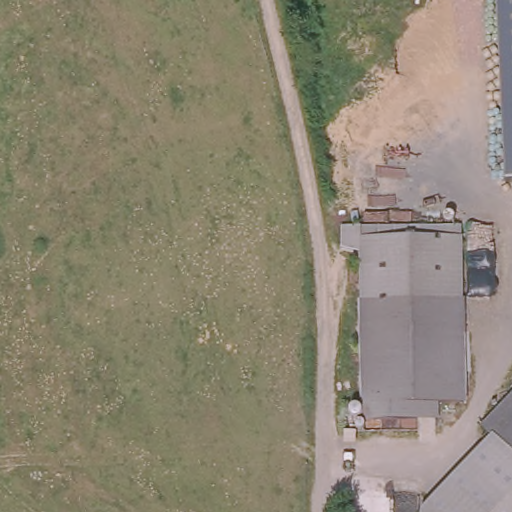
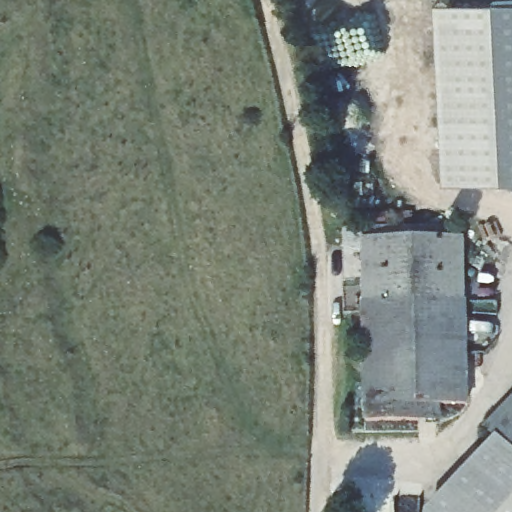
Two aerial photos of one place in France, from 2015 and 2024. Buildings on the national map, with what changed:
unchanged [(497,1),(512,0),(512,182),(506,182),(497,1)]
new [(445,185),(436,5),(497,1),(506,182),(445,185)]
unchanged [(360,257),(341,251),(341,233),(460,229),(460,240),(360,243),(360,257)]
unchanged [(417,423),(367,426),(360,257),(360,243),(460,240),(465,403),(437,405),(437,422),(417,423)]
unchanged [(485,430),(512,400),(512,402),(485,430)]
unchanged [(512,402),(512,457),(496,441),(485,430),(512,402)]
unchanged [(496,441),(512,457),(512,512),(432,512),(428,508),(496,441)]

